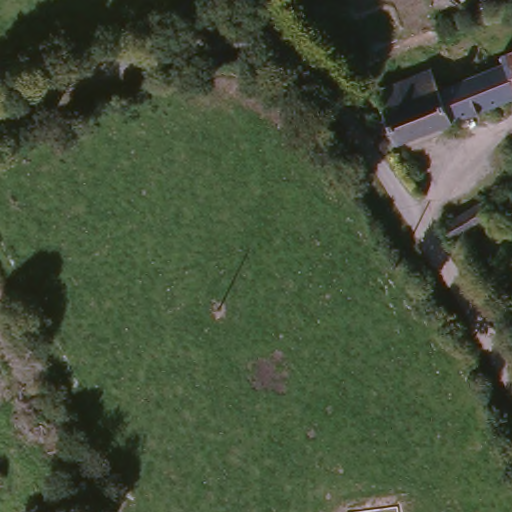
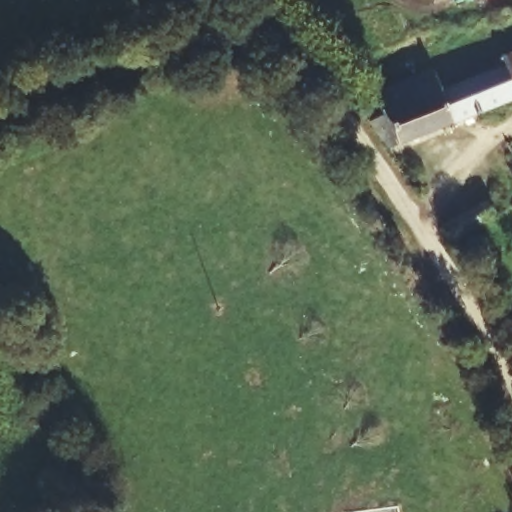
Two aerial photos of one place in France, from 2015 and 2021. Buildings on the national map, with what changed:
unchanged [(426,67),(438,91),(456,83),(495,65),(499,53),(512,49),(512,99),(399,147),(370,92),(426,67)]
unchanged [(346,104),(356,99),(370,92),(399,147),(384,155),(346,104)]
unchanged [(481,240),(457,254),(443,231),(483,209),(496,232),(481,240)]

